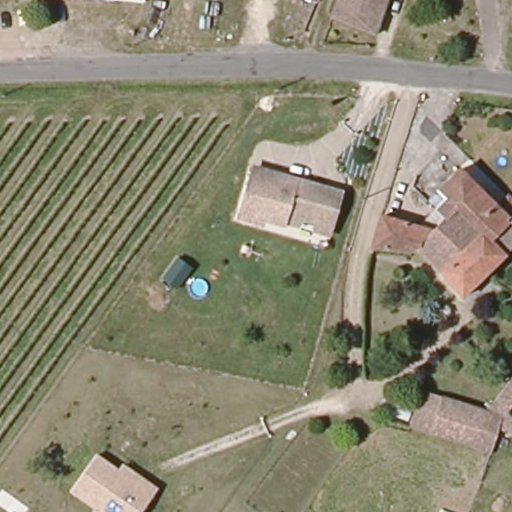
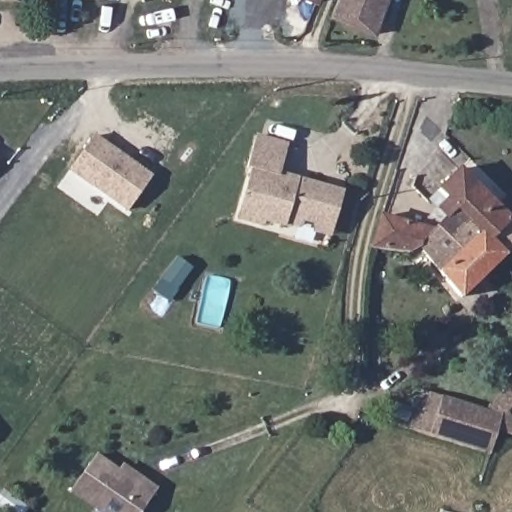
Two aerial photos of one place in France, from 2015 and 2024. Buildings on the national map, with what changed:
unchanged [(317,0),(315,4),(305,0),(317,0)]
unchanged [(333,21),(341,0),(391,0),(381,35),(333,21)]
new [(94,138),(151,179),(128,211),(71,170),(94,138)]
unchanged [(447,195),(439,185),(461,164),(501,206),(510,199),(512,201),(512,220),(511,219),(499,230),(483,244),(451,210),(449,208),(443,213),(436,205),(447,195)]
unchanged [(288,220),(287,223),(268,217),(266,222),(243,216),(259,165),(338,189),(328,223),(334,233),(288,220)]
unchanged [(451,210),(483,244),(499,230),(511,219),(512,220),(512,245),(458,294),(410,244),(430,226),(443,213),(449,208),(451,210)]
unchanged [(430,226),(410,244),(401,253),(369,248),(375,211),(430,226)]
unchanged [(192,270),(176,291),(162,281),(178,259),(192,270)]
unchanged [(495,401),(512,379),(512,407),(504,404),(495,401)]
unchanged [(493,437),(489,449),(488,449),(439,432),(433,430),(411,422),(425,386),(447,393),(502,412),(493,437)]
demolished [(512,456),(489,449),(493,437),(502,412),(504,404),(512,407),(512,456)]
unchanged [(142,512),(96,512),(67,492),(95,455),(117,470),(122,462),(158,487),(142,512)]

